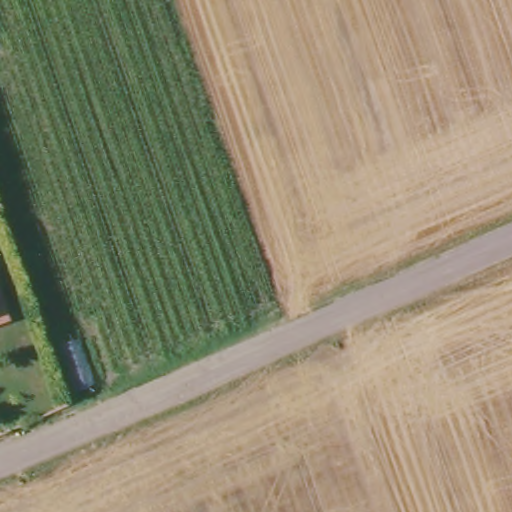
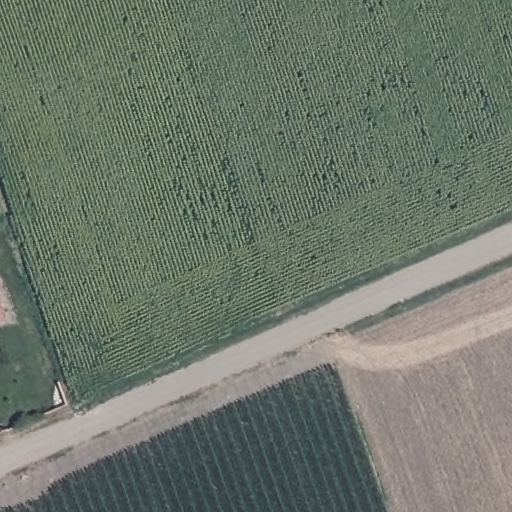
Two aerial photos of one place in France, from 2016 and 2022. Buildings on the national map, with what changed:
unchanged [(4,319),(0,320),(0,307),(4,319)]

